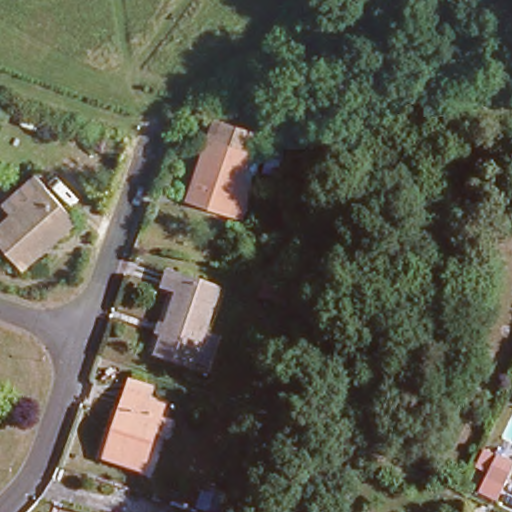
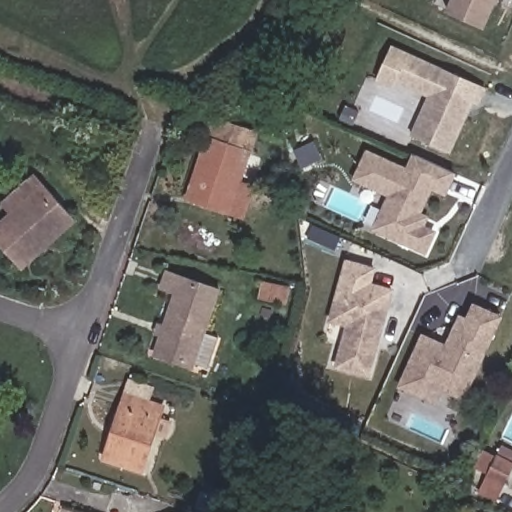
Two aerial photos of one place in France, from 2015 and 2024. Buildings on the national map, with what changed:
new [(445,12),(451,0),(498,0),(484,30),(445,12)]
new [(487,87),(479,106),(472,103),(450,153),(410,135),(428,96),(396,82),(393,89),(376,81),(392,45),(487,87)]
unchanged [(252,126),(226,207),(188,196),(215,114),(252,126)]
new [(406,166),(412,153),(457,173),(447,195),(434,189),(423,212),(430,216),(425,226),(437,232),(426,254),(371,230),(387,195),(353,181),(368,149),(406,166)]
unchanged [(0,245),(0,220),(12,208),(1,197),(27,171),(39,182),(73,215),(20,266),(0,245)]
new [(376,266),(372,282),(394,288),(368,378),(333,368),(345,326),(329,322),(346,258),(376,266)]
unchanged [(214,279),(197,329),(209,334),(198,364),(188,361),(186,365),(149,353),(153,338),(146,336),(150,321),(158,323),(171,286),(156,280),(162,261),(214,279)]
unchanged [(283,280),(305,288),(299,303),(278,295),(283,280)]
new [(465,402),(442,392),(437,405),(396,388),(421,332),(446,343),(459,314),(465,317),(472,302),(504,315),(465,402)]
unchanged [(142,459),(106,448),(124,398),(129,384),(148,390),(164,395),(142,459)]
demolished [(499,435),(510,414),(512,415),(512,441),(499,435)]
new [(496,503),(477,494),(487,475),(474,469),(484,449),(512,463),(512,471),(496,503)]
unchanged [(477,511),(479,512),(476,512),(477,511)]

